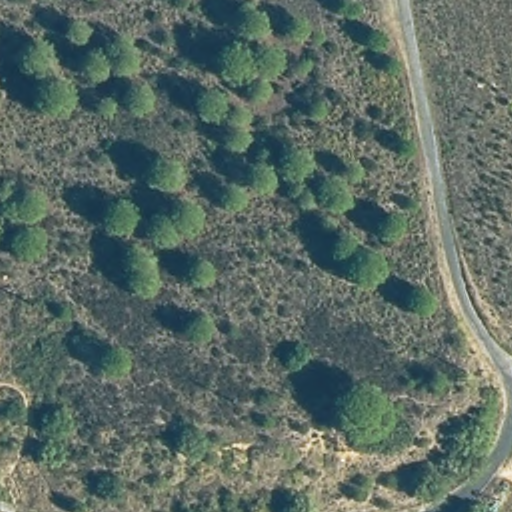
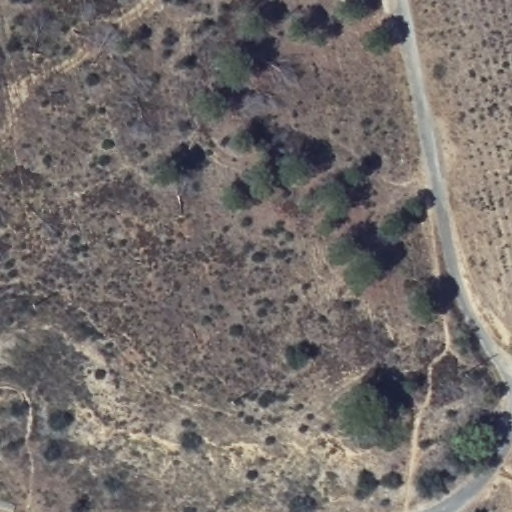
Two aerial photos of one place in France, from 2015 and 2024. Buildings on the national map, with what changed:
unchanged [(18,502),(15,512),(4,512),(0,511),(0,498),(18,502)]

